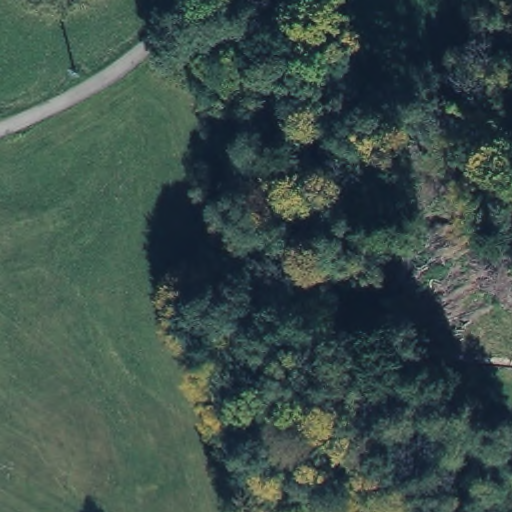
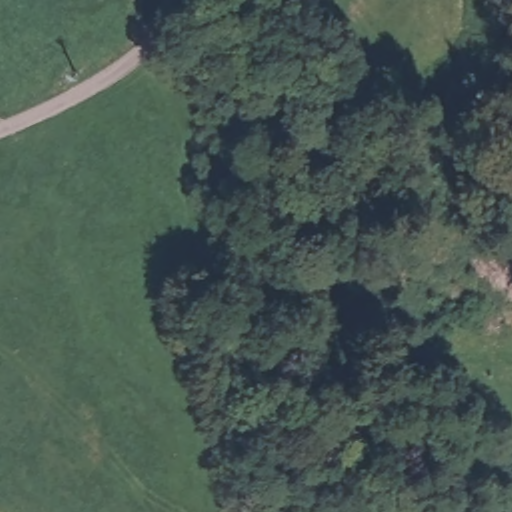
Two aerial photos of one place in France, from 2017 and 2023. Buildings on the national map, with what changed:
[]

